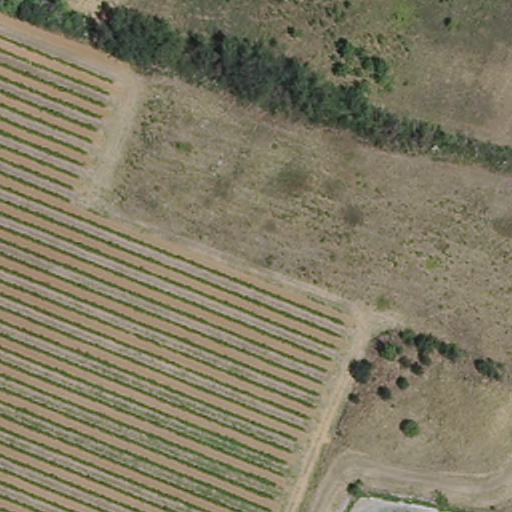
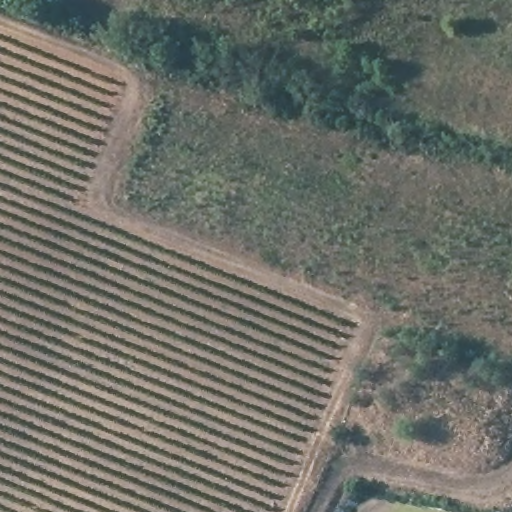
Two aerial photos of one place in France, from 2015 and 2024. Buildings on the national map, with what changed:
[]

